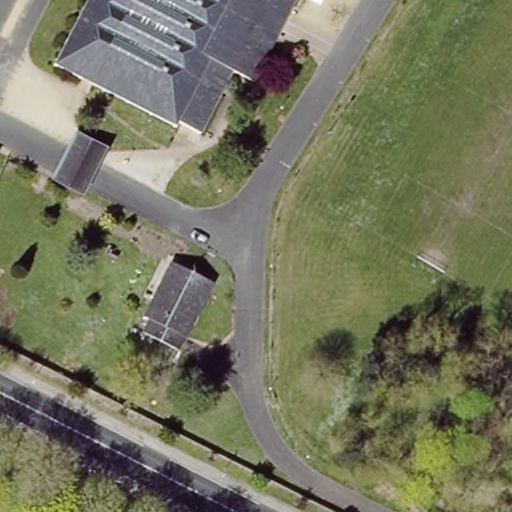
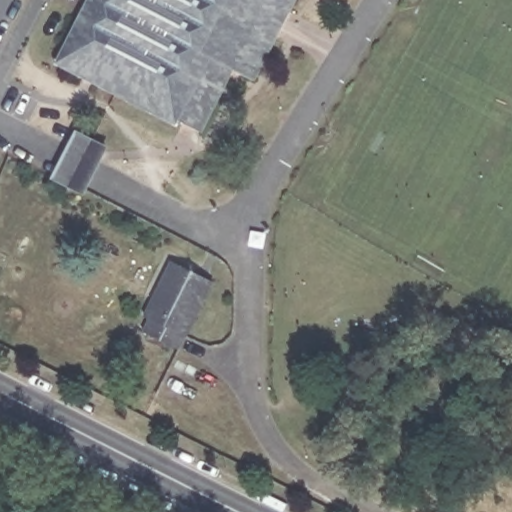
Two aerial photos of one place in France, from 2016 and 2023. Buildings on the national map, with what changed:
unchanged [(91,0),(299,0),(261,75),(241,64),(209,126),(186,115),(183,121),(61,59),(91,0)]
unchanged [(178,261),(218,280),(190,336),(188,335),(182,348),(149,331),(155,318),(149,315),(178,261)]

